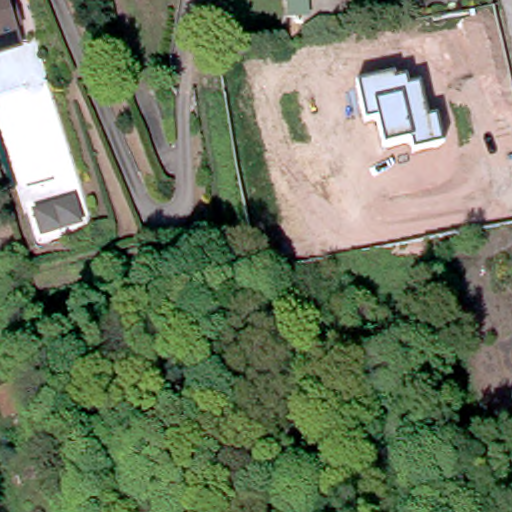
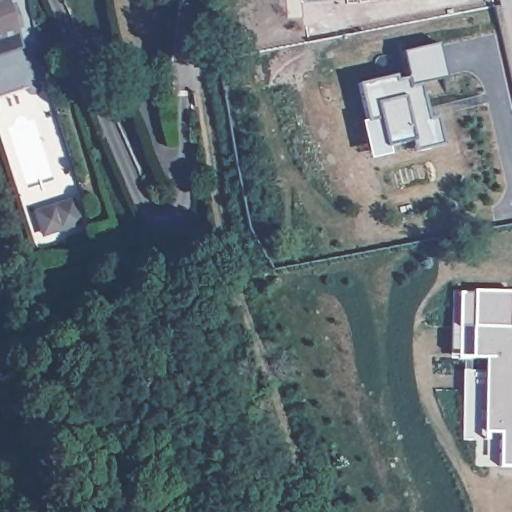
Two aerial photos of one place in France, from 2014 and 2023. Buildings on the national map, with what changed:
unchanged [(12,0),(14,0),(27,38),(0,48),(0,0),(7,0),(8,1),(12,0)]
new [(409,87),(406,73),(402,52),(438,44),(444,75),(421,85),(409,87)]
unchanged [(406,73),(409,87),(421,85),(427,118),(436,116),(444,144),(412,150),(410,139),(384,144),(377,117),(366,120),(356,84),(406,73)]
unchanged [(44,237),(32,208),(72,194),(84,225),(44,237)]
new [(472,292),(472,290),(511,290),(511,293),(512,294),(512,466),(498,466),(500,432),(482,431),(484,358),(470,357),(470,326),(457,326),(457,292),(472,292)]

